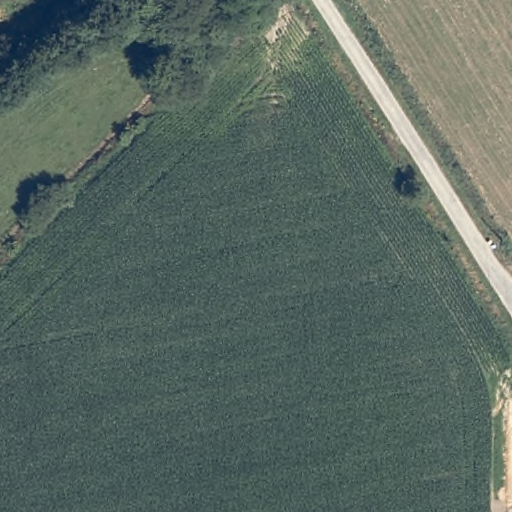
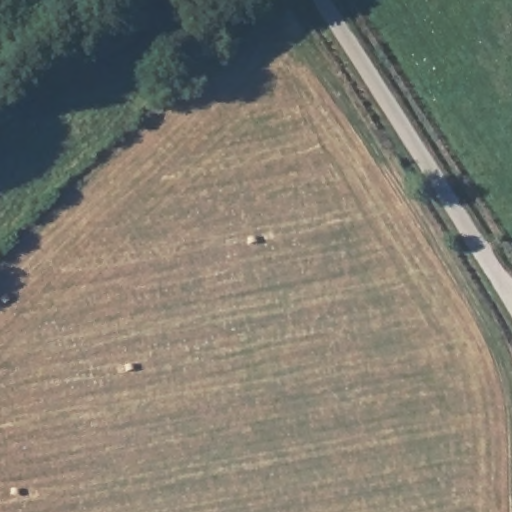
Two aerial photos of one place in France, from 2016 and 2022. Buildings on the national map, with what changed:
[]

